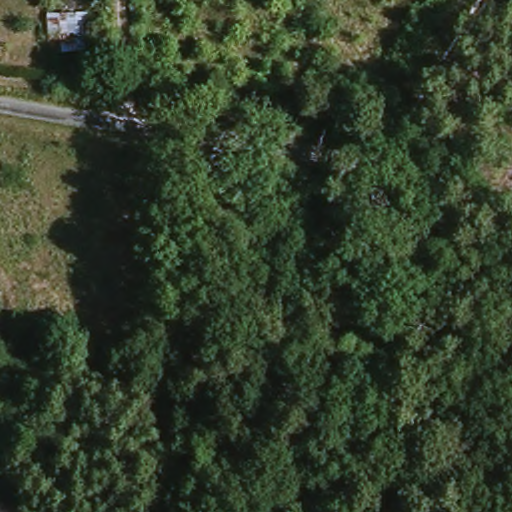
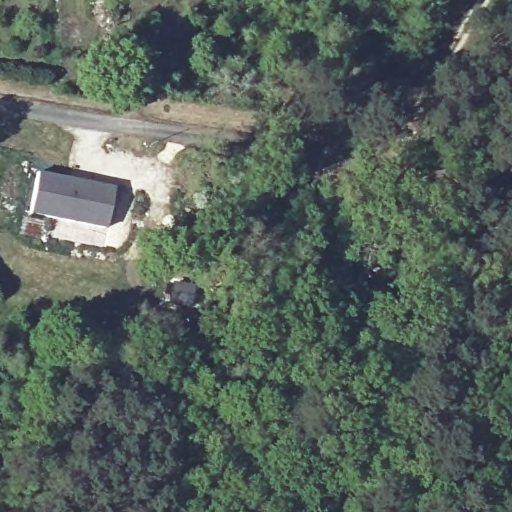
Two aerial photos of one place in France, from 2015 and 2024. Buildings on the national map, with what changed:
unchanged [(93,56),(56,57),(51,17),(93,16),(93,56)]
new [(105,230),(28,215),(38,172),(112,187),(105,230)]

